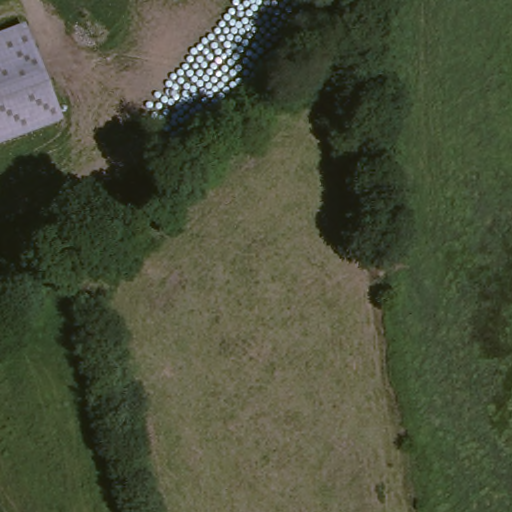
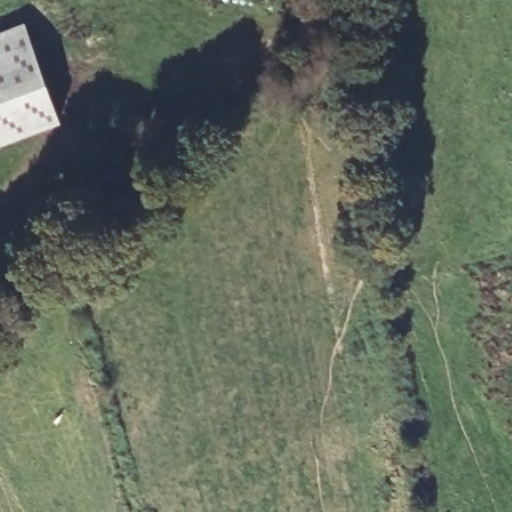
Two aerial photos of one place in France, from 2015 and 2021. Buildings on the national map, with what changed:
unchanged [(64,122),(0,146),(0,33),(24,24),(64,122)]

